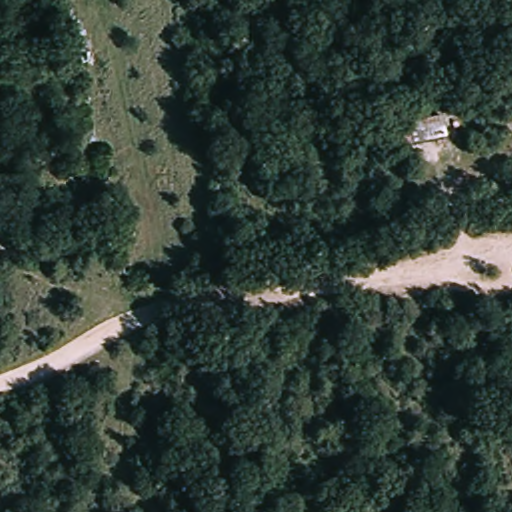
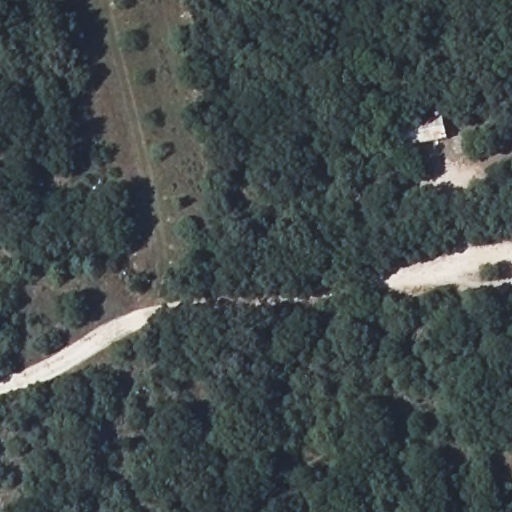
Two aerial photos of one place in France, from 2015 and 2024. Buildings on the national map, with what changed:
unchanged [(450,139),(408,147),(404,125),(447,116),(450,139)]

